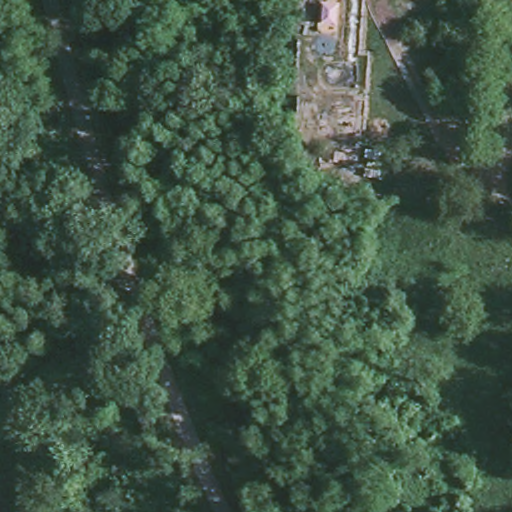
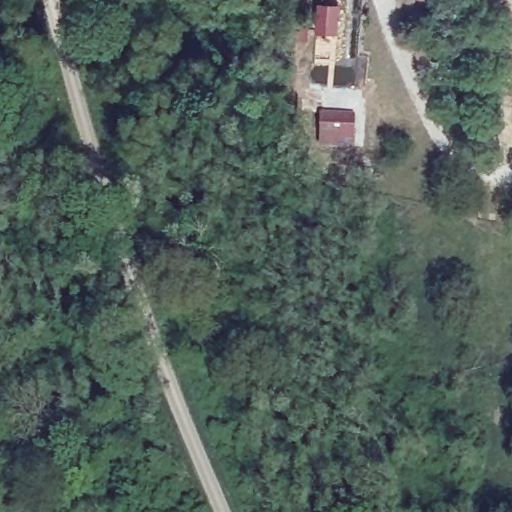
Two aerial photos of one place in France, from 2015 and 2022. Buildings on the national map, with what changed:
new [(339,9),(339,35),(319,35),(321,9),(339,9)]
new [(357,145),(319,145),(319,113),(353,112),(357,145)]

